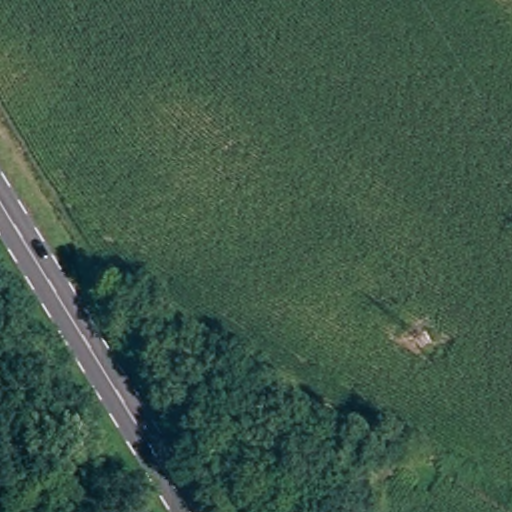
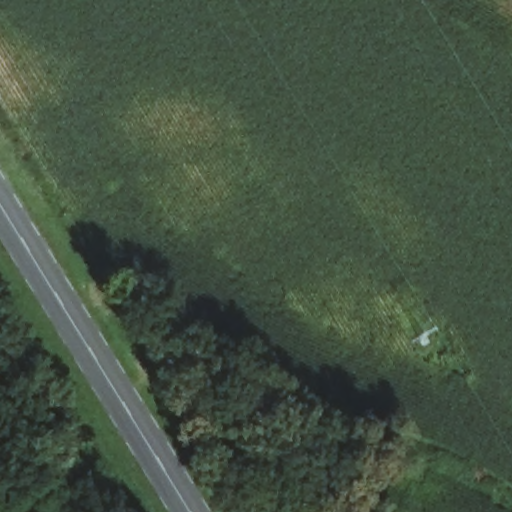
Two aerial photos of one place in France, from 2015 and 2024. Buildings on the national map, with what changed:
[]

